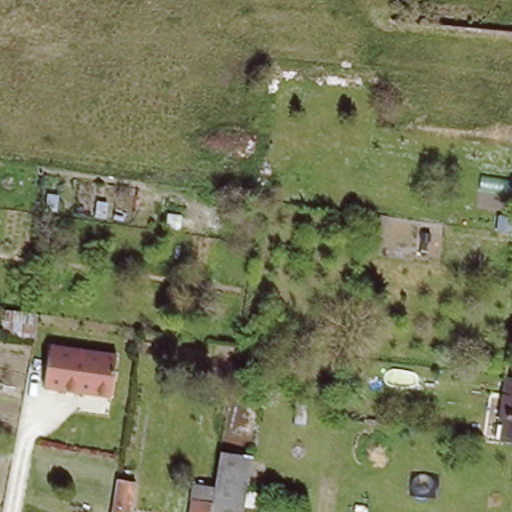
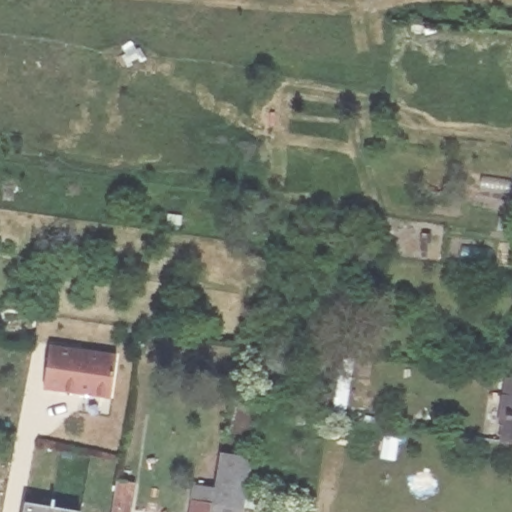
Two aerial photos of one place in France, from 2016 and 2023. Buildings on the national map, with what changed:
unchanged [(170,339),(169,344),(164,343),(164,338),(170,339)]
unchanged [(116,355),(110,399),(44,390),(49,343),(116,355)]
unchanged [(512,378),(512,392),(510,391),(512,378)]
unchanged [(512,402),(512,439),(507,439),(509,420),(505,419),(508,401),(512,402)]
unchanged [(197,485),(215,489),(222,451),(252,456),(247,491),(267,494),(264,508),(252,506),(245,505),(243,512),(192,512),(194,500),(197,485)]
unchanged [(123,512),(113,512),(117,485),(127,486),(123,512)]
unchanged [(131,512),(123,512),(127,486),(134,487),(131,512)]
new [(80,511),(79,512),(22,512),(24,501),(80,511)]

